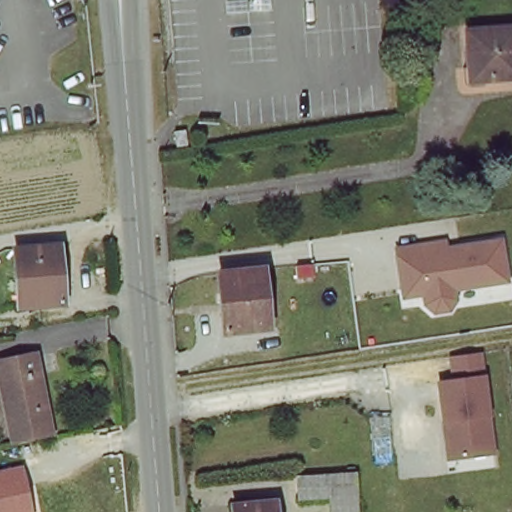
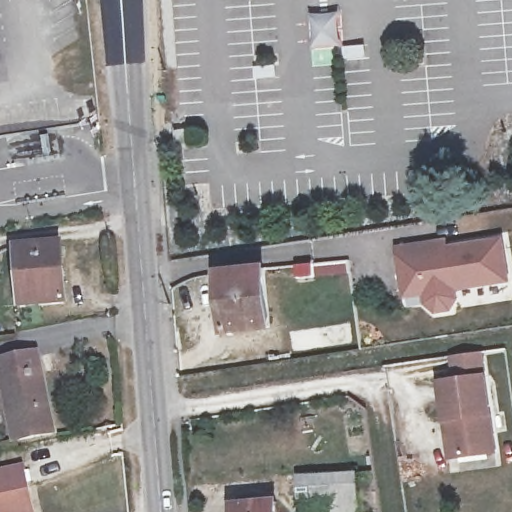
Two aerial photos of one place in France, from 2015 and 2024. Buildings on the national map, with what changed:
demolished [(512,27),(512,77),(470,81),(464,32),(512,27)]
unchanged [(457,289),(460,304),(454,316),(437,318),(426,310),(425,298),(403,300),(395,247),(450,238),(450,244),(504,238),(511,285),(457,289)]
unchanged [(62,299),(18,299),(15,249),(58,245),(62,299)]
unchanged [(269,270),(275,329),(229,334),(222,277),(269,270)]
unchanged [(53,432),(14,437),(5,359),(44,354),(53,432)]
unchanged [(442,421),(437,383),(482,377),(492,452),(455,457),(447,458),(442,421)]
unchanged [(0,470),(24,466),(32,512),(0,512),(0,470)]
unchanged [(356,473),(357,512),(333,512),(331,500),(305,501),(301,480),(356,473)]
unchanged [(281,502),(281,512),(233,512),(233,503),(281,502)]

